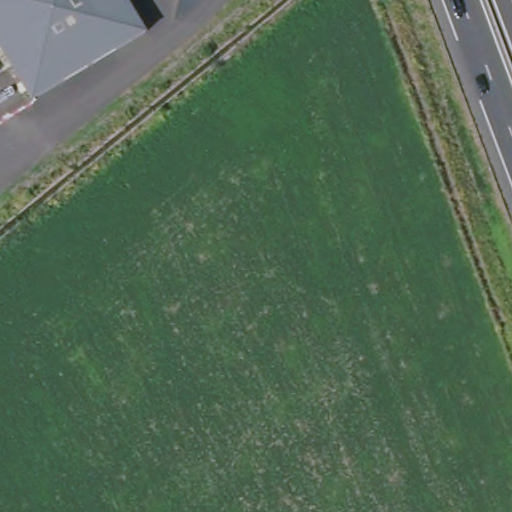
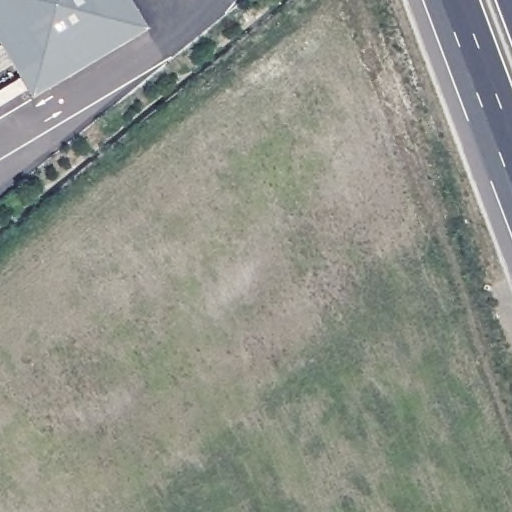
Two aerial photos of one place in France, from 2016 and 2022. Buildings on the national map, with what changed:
unchanged [(34,99),(0,41),(0,0),(131,0),(148,30),(34,99)]

